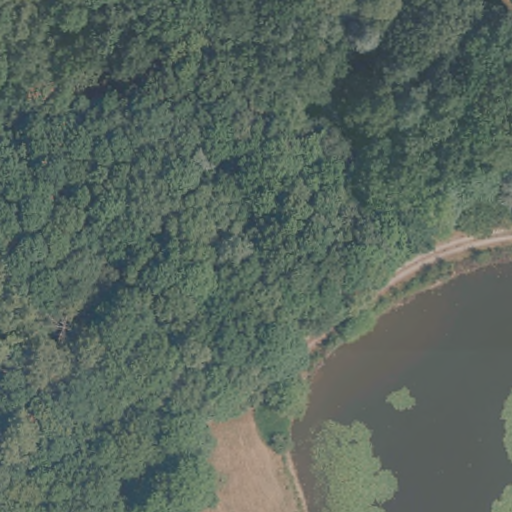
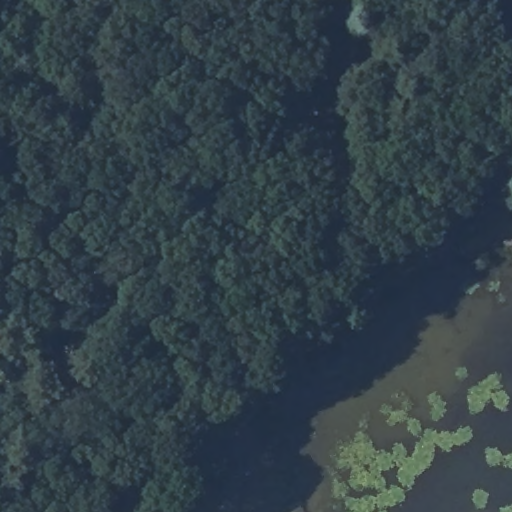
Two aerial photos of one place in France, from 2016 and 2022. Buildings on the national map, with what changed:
unchanged [(303,76),(335,73),(342,119),(312,120),(303,76)]

